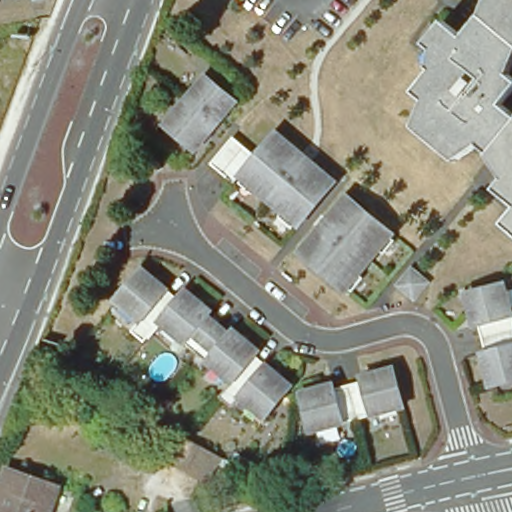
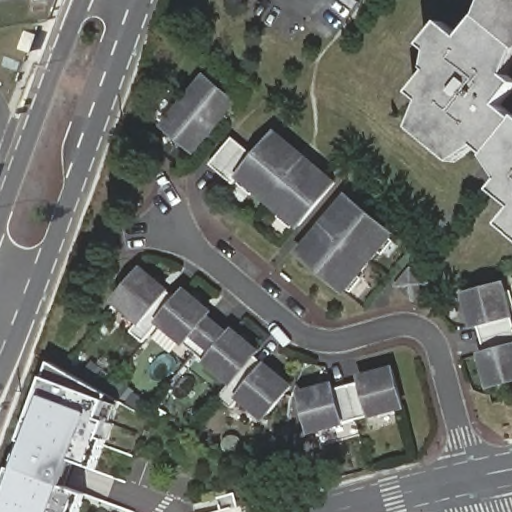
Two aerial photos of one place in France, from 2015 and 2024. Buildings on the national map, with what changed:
unchanged [(36,0),(50,0),(50,2),(37,4),(36,0)]
unchanged [(488,0),(512,0),(512,66),(510,73),(502,66),(476,46),(463,35),(480,16),(488,0)]
unchanged [(417,126),(413,122),(428,100),(416,90),(434,69),(429,65),(438,49),(428,41),(445,20),(463,35),(476,46),(502,66),(510,73),(512,75),(512,89),(502,102),(512,110),(512,123),(489,150),(481,143),(461,160),(456,157),(417,126)]
unchanged [(205,77),(235,102),(215,127),(184,102),(205,77)]
unchanged [(215,127),(195,151),(165,125),(184,102),(215,127)]
unchanged [(512,168),(505,176),(486,154),(489,150),(512,123),(512,168)]
unchanged [(230,137),(253,154),(273,130),(333,184),(296,228),(208,163),(230,137)]
unchanged [(505,176),(512,168),(512,200),(497,186),(505,176)]
unchanged [(344,196),(393,233),(344,295),(292,255),(344,196)]
unchanged [(512,215),(512,230),(505,223),(512,215)]
unchanged [(395,285),(410,267),(430,282),(414,301),(395,285)]
unchanged [(138,268),(174,299),(155,322),(139,341),(126,330),(135,321),(111,300),(138,268)]
unchanged [(474,327),(465,293),(503,284),(512,320),(512,331),(481,339),(477,326),(474,327)]
unchanged [(181,290),(206,312),(202,316),(213,326),(191,352),(155,322),(174,299),(181,290)]
unchanged [(225,335),(228,331),(253,352),(250,357),(226,382),(191,352),(213,326),(225,335)]
unchanged [(484,351),(481,339),(512,331),(512,379),(489,385),(480,352),(484,351)]
unchanged [(285,387),(258,419),(234,398),(226,408),(213,397),(226,382),(250,357),(285,387)]
new [(18,471),(29,442),(23,441),(46,377),(52,362),(110,393),(108,400),(103,418),(110,420),(104,437),(108,438),(98,467),(75,458),(66,486),(87,493),(80,512),(0,512),(0,498),(11,468),(18,471)]
unchanged [(360,381),(359,377),(393,369),(403,407),(356,419),(348,384),(360,381)]
unchanged [(334,383),(335,387),(348,384),(356,419),(311,430),(301,392),(334,383)]
demolished [(210,482),(172,461),(184,437),(222,458),(210,482)]
demolished [(58,494),(50,512),(0,512),(0,495),(7,475),(58,494)]

